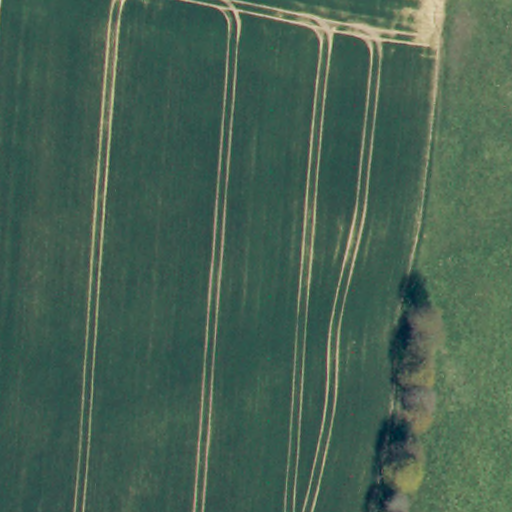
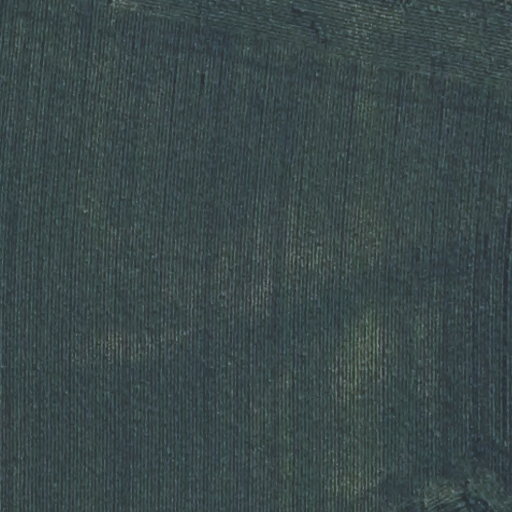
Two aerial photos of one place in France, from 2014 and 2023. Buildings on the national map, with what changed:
[]

